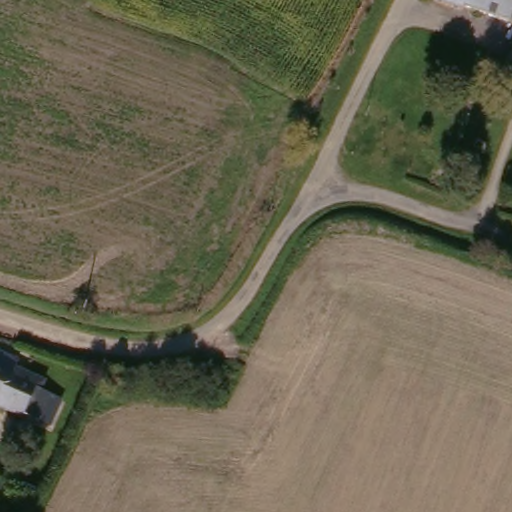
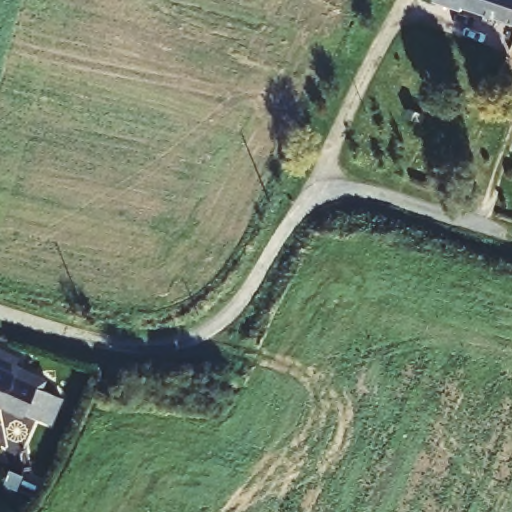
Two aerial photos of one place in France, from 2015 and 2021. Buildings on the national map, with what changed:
unchanged [(512,0),(512,22),(444,0),(512,0)]
unchanged [(13,368),(39,380),(38,383),(54,391),(42,422),(0,403),(0,346),(18,354),(13,368)]

